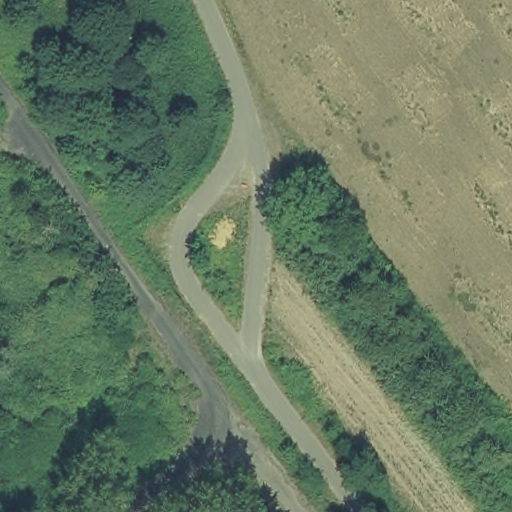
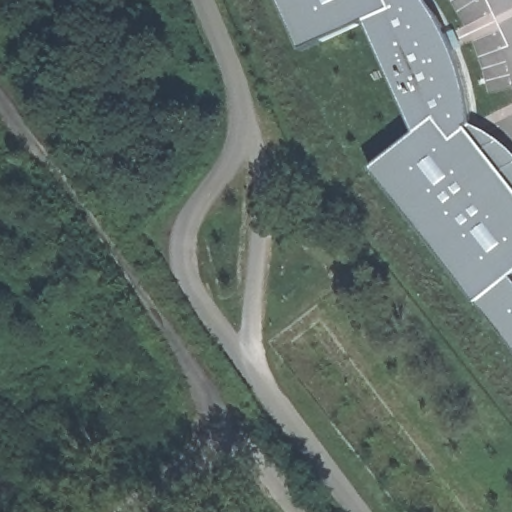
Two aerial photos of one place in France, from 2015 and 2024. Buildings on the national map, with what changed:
new [(440,16),(448,33),(457,50),(463,68),(468,87),(472,106),(473,123),(473,124),(487,130),(500,139),(512,148),(512,149),(512,345),(478,303),(370,167),(415,132),(365,21),(301,50),(278,0),(429,0),(440,16)]

